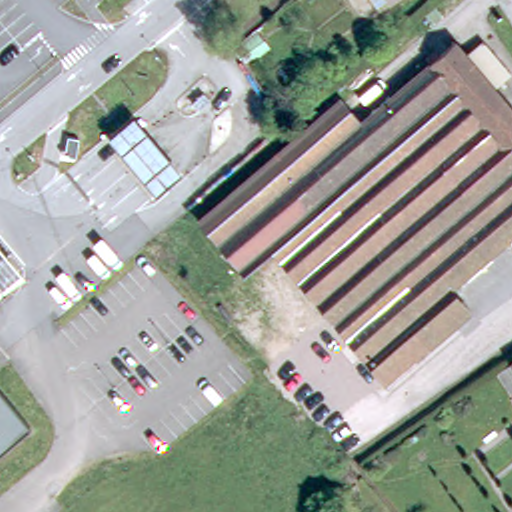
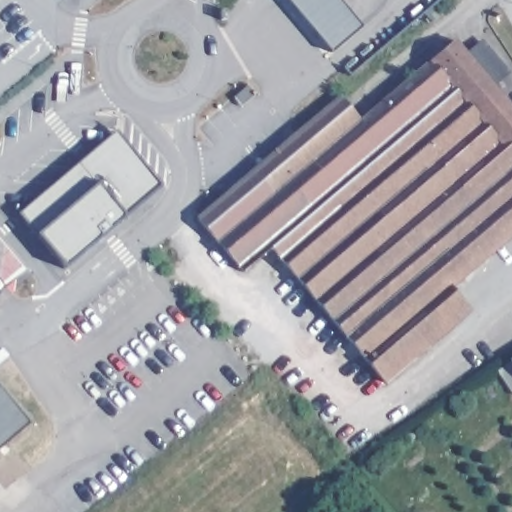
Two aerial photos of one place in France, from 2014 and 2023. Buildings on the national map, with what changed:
new [(361,27),(331,53),(287,0),(338,0),(361,27)]
unchanged [(366,372),(372,368),(332,320),(272,249),(264,256),(245,272),(239,265),(201,220),(343,100),(362,124),(457,43),(512,107),(512,241),(476,271),(496,295),(387,385),(385,383),(379,387),(366,372)]
new [(126,219),(65,268),(36,235),(18,215),(116,131),(162,186),(126,219)]
unchanged [(510,365),(512,363),(512,369),(510,365)]
unchanged [(0,456),(0,392),(32,430),(0,456)]

